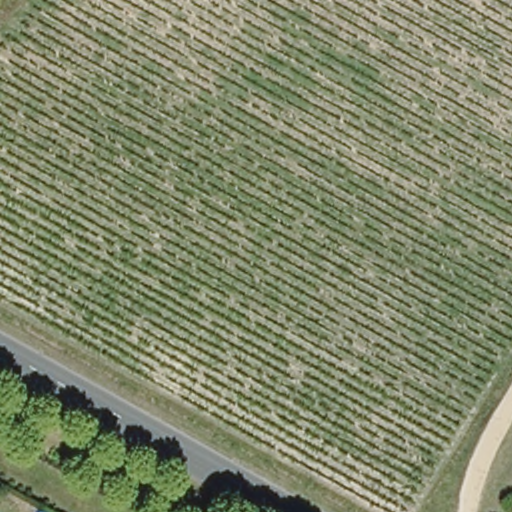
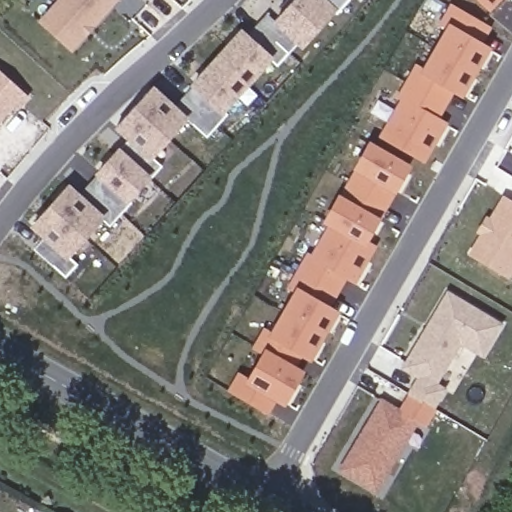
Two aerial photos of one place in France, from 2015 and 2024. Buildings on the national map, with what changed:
new [(61,0),(116,0),(69,51),(39,24),(61,0)]
new [(334,16),(330,12),(299,47),(296,44),(273,23),(282,14),(278,11),(287,0),(348,0),(334,16)]
new [(489,12),(477,0),(500,0),(489,12)]
new [(484,42),(491,47),(463,99),(454,94),(440,117),(448,122),(426,164),(379,137),(399,101),(395,98),(415,64),(423,67),(444,30),(438,26),(451,3),(492,28),(484,42)]
new [(264,14),(273,23),(296,44),(286,55),(273,42),(260,55),(243,37),(264,14)]
new [(50,267),(31,250),(43,237),(31,227),(66,189),(75,197),(95,175),(116,152),(128,140),(114,127),(149,89),(170,109),(191,86),(238,33),(243,37),(260,55),(273,42),(286,55),(274,68),(267,61),(220,112),(224,116),(204,139),(189,126),(183,120),(148,158),(159,168),(146,181),(144,180),(125,202),(127,203),(105,228),(98,221),(64,258),(74,267),(63,278),(50,267)]
new [(16,107),(12,104),(0,117),(0,70),(28,96),(16,107)]
new [(395,192),(381,219),(368,242),(377,247),(355,284),(347,279),(332,306),(340,311),(311,362),(302,357),(296,365),(304,371),(284,407),(276,402),(268,416),(227,391),(238,372),(248,377),(260,356),(251,349),(264,327),(270,331),(292,292),(286,288),(307,252),(310,254),(326,225),(323,223),(338,195),(353,169),(369,141),(411,166),(395,192)]
new [(480,231),(487,220),(490,222),(504,197),(512,201),(512,269),(508,277),(471,256),(484,234),(480,231)]
new [(447,292),(499,323),(479,358),(457,345),(434,382),(443,388),(433,406),(409,392),(419,376),(403,367),(447,292)]
new [(381,401),(417,422),(375,492),(339,471),(381,401)]

